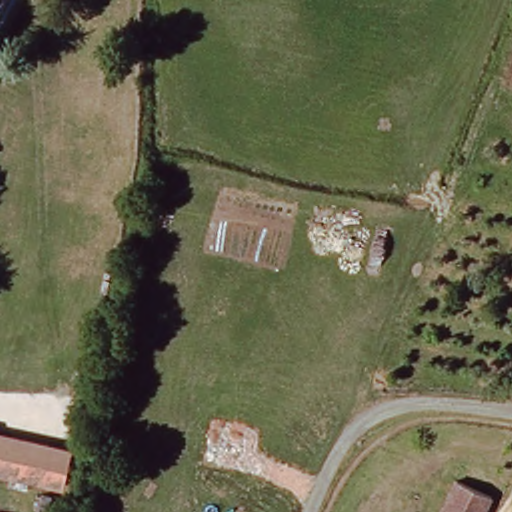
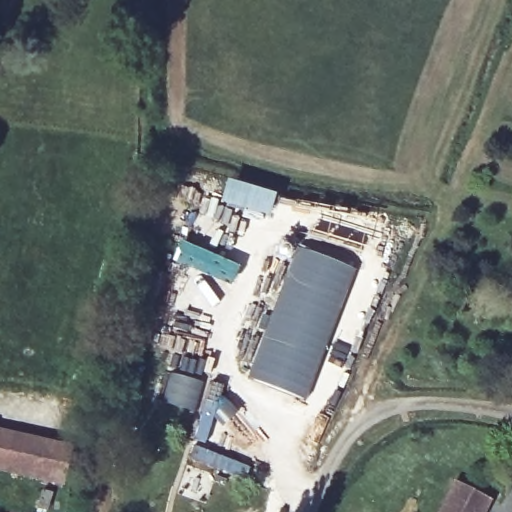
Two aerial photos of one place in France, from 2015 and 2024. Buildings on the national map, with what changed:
new [(295,249),(352,270),(302,401),(246,380),(295,249)]
unchanged [(0,470),(0,435),(68,448),(62,482),(0,470)]
unchanged [(455,478),(491,495),(484,512),(440,512),(455,478)]

